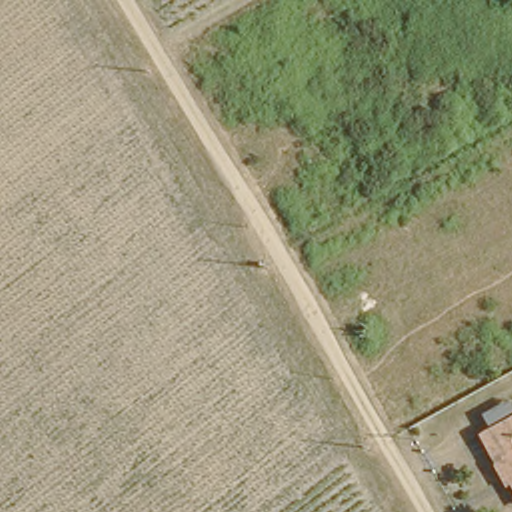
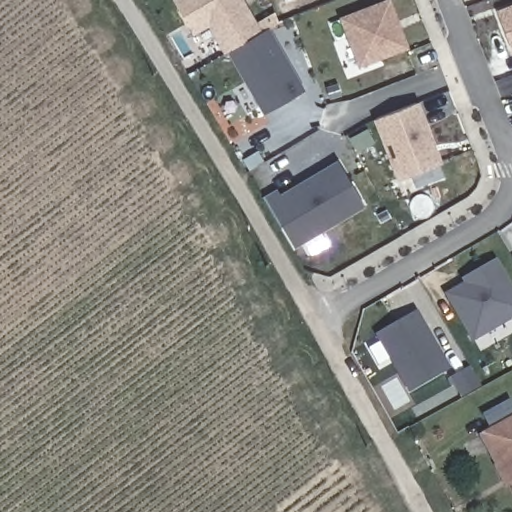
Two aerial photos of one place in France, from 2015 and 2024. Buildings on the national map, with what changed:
new [(210,25),(193,35),(173,0),(244,0),(263,31),(226,54),(210,25)]
new [(357,68),(338,17),(383,0),(391,0),(407,48),(357,68)]
new [(512,4),(512,54),(496,10),(512,4)]
new [(273,132),(238,70),(274,49),(310,110),(273,132)]
new [(443,164),(397,181),(374,120),(419,102),(443,164)]
new [(336,160),(365,206),(294,249),(263,196),(276,188),(280,194),(336,160)]
new [(444,294),(463,283),(461,279),(497,259),(512,286),(512,320),(473,342),(444,294)]
new [(408,392),(375,334),(416,310),(450,370),(408,392)]
unchanged [(512,485),(503,470),(500,471),(492,457),(492,450),(481,427),(512,410),(512,485)]

